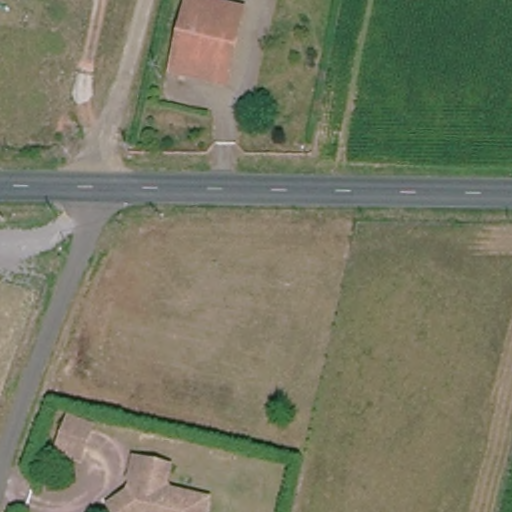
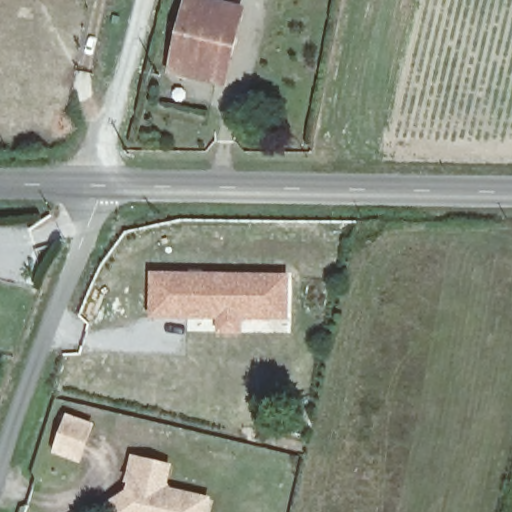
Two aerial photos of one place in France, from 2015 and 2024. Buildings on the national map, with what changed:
unchanged [(232,81),(219,79),(175,70),(189,0),(228,0),(235,1),(246,4),(232,81)]
unchanged [(0,292),(0,268),(6,269),(0,292)]
new [(290,273),(290,319),(244,320),(244,332),(217,333),(217,317),(151,317),(150,271),(290,273)]
unchanged [(81,457),(55,451),(64,419),(89,426),(81,457)]
unchanged [(124,495),(141,485),(142,477),(136,475),(143,454),(178,466),(173,481),(177,490),(213,502),(209,512),(119,512),(113,501),(124,495)]

